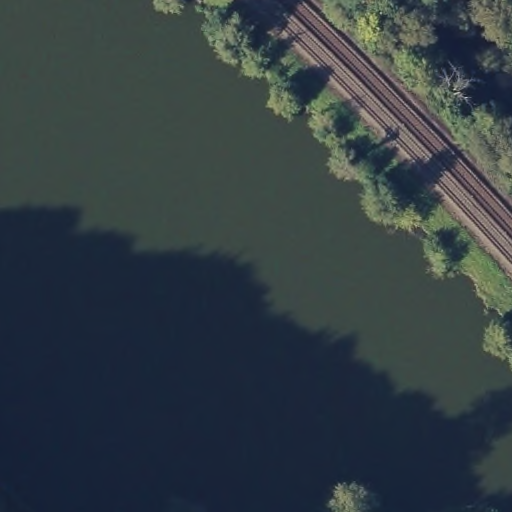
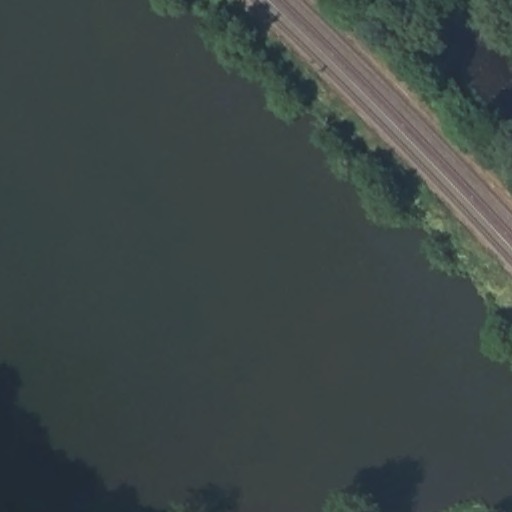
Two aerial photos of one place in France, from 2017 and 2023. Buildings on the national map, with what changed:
[]

